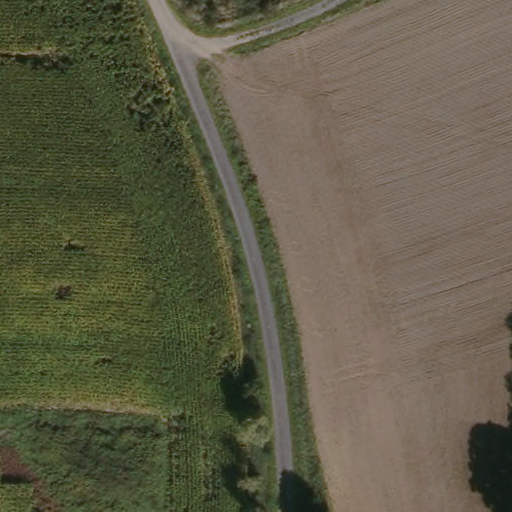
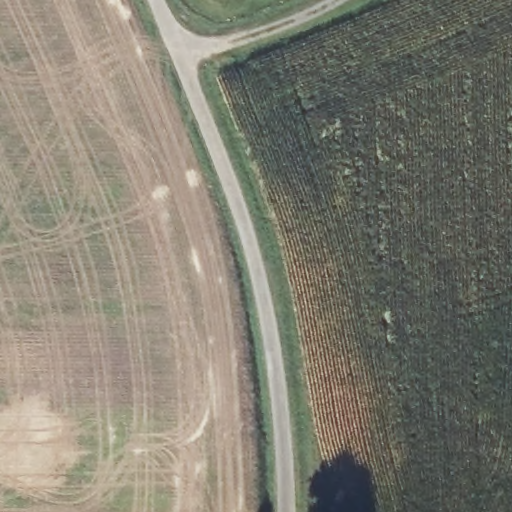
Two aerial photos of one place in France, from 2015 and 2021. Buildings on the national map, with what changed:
[]

